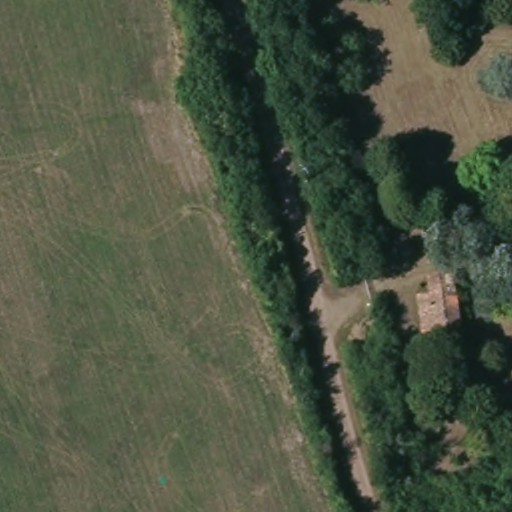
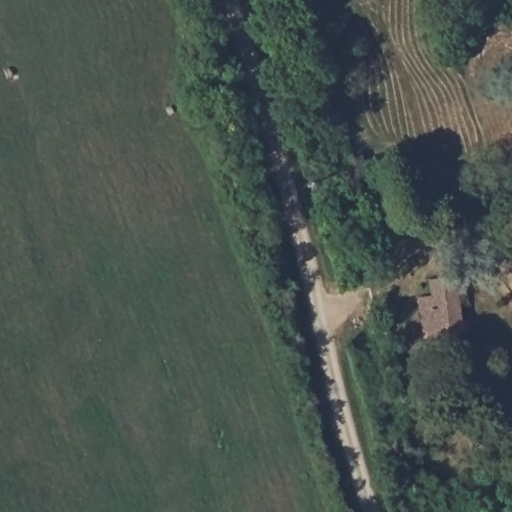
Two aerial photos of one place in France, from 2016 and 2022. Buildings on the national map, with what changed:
unchanged [(360,157),(370,197),(358,200),(347,161),(360,157)]
unchanged [(440,338),(426,340),(418,298),(431,297),(429,282),(455,278),(462,318),(465,336),(440,338)]

